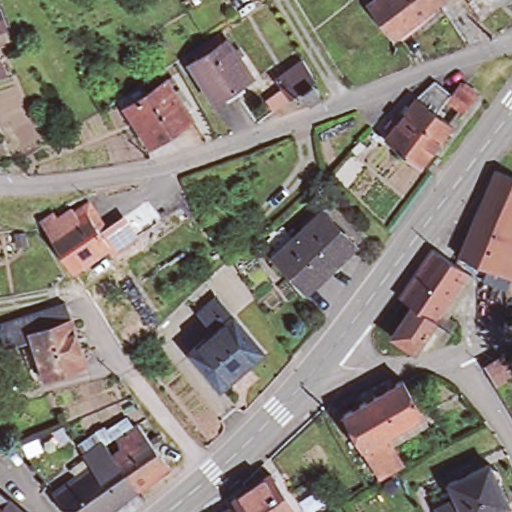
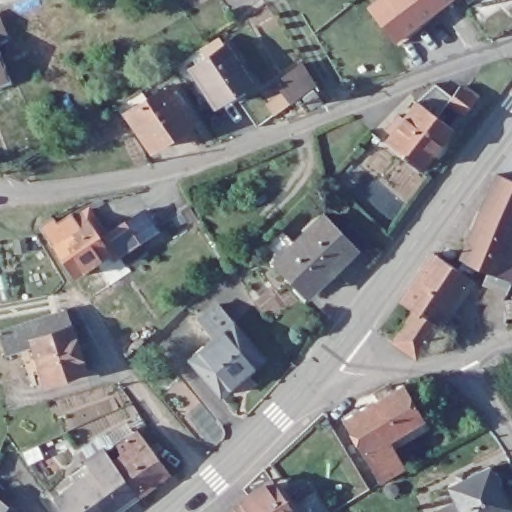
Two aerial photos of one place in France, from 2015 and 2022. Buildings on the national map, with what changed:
unchanged [(378,0),(447,0),(417,22),(422,28),(399,45),(395,39),(370,6),(378,0)]
unchanged [(0,42),(0,27),(5,40),(0,42)]
unchanged [(227,42),(252,80),(215,106),(189,68),(227,42)]
unchanged [(315,84),(291,101),(277,82),(302,63),(315,84)]
unchanged [(0,71),(5,84),(0,85),(0,71)]
unchanged [(151,149),(126,113),(167,85),(175,97),(180,93),(194,111),(187,115),(192,121),(151,149)]
unchanged [(434,158),(420,175),(383,146),(390,138),(385,134),(397,119),(402,123),(416,104),(434,86),(451,100),(460,90),(466,96),(469,94),(479,101),(464,120),(446,106),(439,115),(445,120),(442,125),(453,134),(447,141),(451,145),(438,161),(434,158)]
unchanged [(321,99),(310,106),(304,96),(314,89),(321,99)]
unchanged [(372,136),(380,144),(377,148),(369,141),(372,136)]
unchanged [(495,179),(496,178),(512,184),(512,224),(481,211),(495,179)]
unchanged [(510,285),(495,279),(459,264),(481,211),(512,224),(512,236),(502,259),(512,264),(512,280),(510,285)]
unchanged [(158,233),(117,259),(104,239),(145,213),(158,233)]
unchanged [(110,257),(72,282),(49,246),(50,245),(40,231),(39,228),(51,219),(52,223),(56,228),(70,219),(76,228),(85,222),(110,257)]
unchanged [(359,254),(325,286),(320,280),(306,294),(280,266),(284,263),(272,249),(287,235),(300,248),(328,222),(359,254)]
unchanged [(400,304),(432,257),(467,280),(415,359),(392,344),(412,313),(400,304)]
unchanged [(197,320),(218,304),(264,359),(220,396),(189,359),(213,339),(197,320)]
unchanged [(70,324),(29,337),(32,344),(5,352),(0,335),(0,330),(65,309),(70,324)]
unchanged [(29,337),(70,324),(85,371),(45,384),(32,344),(29,337)]
unchanged [(502,359),(512,376),(512,377),(495,387),(485,369),(502,359)]
unchanged [(379,486),(362,458),(341,423),(402,388),(422,423),(428,431),(390,454),(401,474),(379,486)]
unchanged [(139,430),(150,445),(157,440),(162,448),(155,453),(170,473),(137,496),(112,463),(122,456),(116,446),(139,430)]
unchanged [(137,496),(116,512),(64,512),(54,499),(92,472),(85,462),(102,450),(105,453),(110,459),(112,463),(137,496)]
unchanged [(455,505),(449,490),(459,485),(475,477),(489,471),(491,476),(497,478),(500,484),(499,490),(508,512),(507,512),(442,512),(455,505)]
unchanged [(232,505),(271,479),(294,512),(236,512),(235,509),(232,505)]
unchanged [(0,499),(10,507),(15,512),(0,512),(0,499)]
unchanged [(236,512),(231,512),(235,509),(236,512)]

